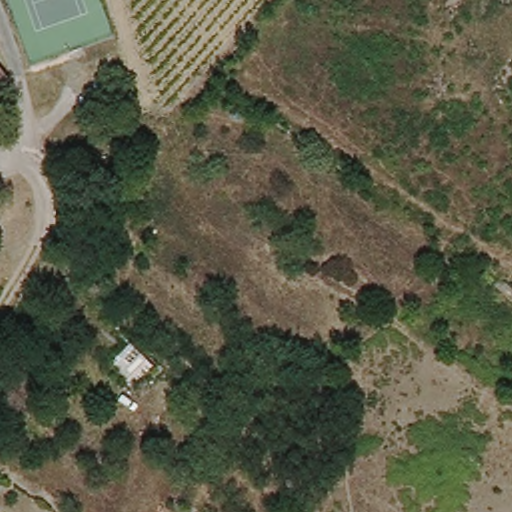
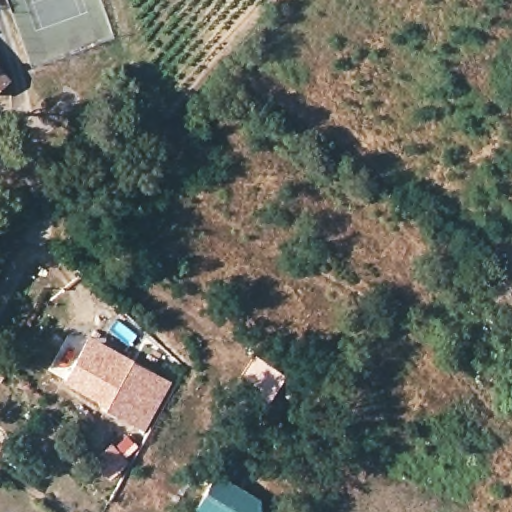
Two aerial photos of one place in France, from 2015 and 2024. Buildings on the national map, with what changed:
unchanged [(0,81),(0,68),(7,76),(0,81)]
new [(88,333),(171,381),(143,429),(104,407),(63,381),(88,333)]
new [(287,376),(268,400),(238,378),(256,355),(287,376)]
new [(128,462),(108,480),(90,460),(110,442),(128,462)]
new [(211,468),(266,499),(261,512),(189,512),(188,512),(211,468)]

